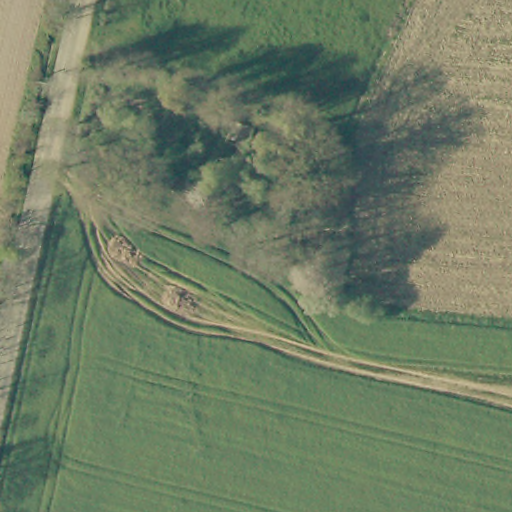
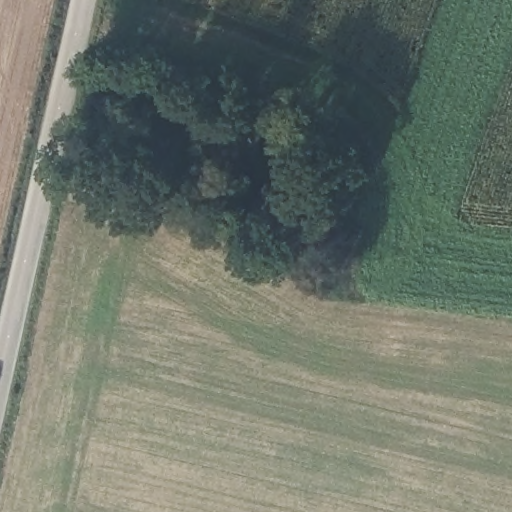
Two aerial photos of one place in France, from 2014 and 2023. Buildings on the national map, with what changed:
unchanged [(215,185),(232,140),(250,147),(232,193),(215,185)]
unchanged [(300,193),(288,232),(232,205),(247,169),(300,193)]

